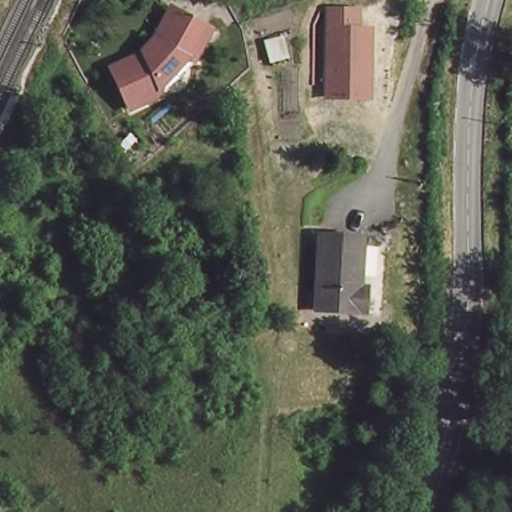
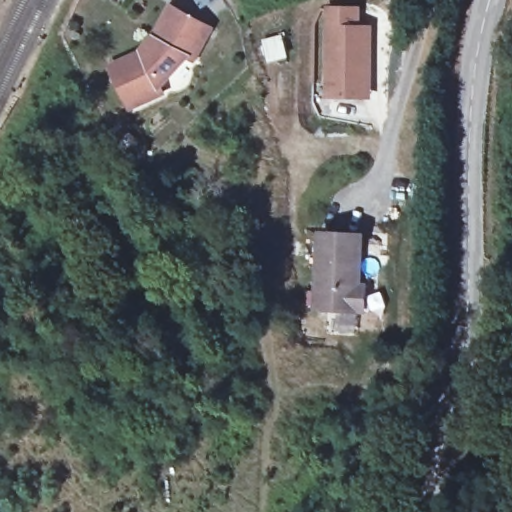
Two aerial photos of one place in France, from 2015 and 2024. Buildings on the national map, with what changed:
unchanged [(197,60),(189,57),(172,86),(130,106),(110,65),(148,46),(165,5),(215,25),(197,60)]
unchanged [(336,14),(369,15),(369,33),(376,33),(376,66),(368,66),(367,100),(346,99),(334,87),(336,14)]
unchanged [(512,121),(512,160),(506,160),(505,121),(512,121)]
unchanged [(361,240),(356,289),(362,290),(361,312),(312,307),(320,235),(361,240)]

